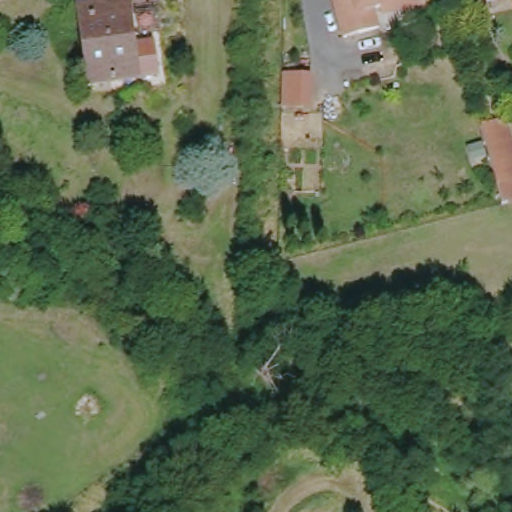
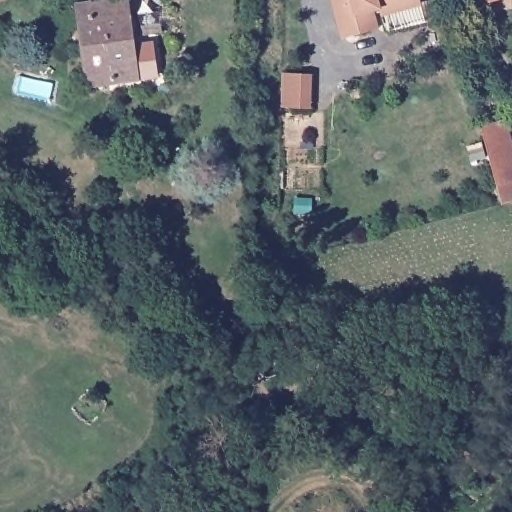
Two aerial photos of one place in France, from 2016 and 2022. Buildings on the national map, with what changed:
unchanged [(122,49),(145,46),(150,79),(80,87),(70,5),(117,0),(122,49)]
unchanged [(370,29),(335,38),(324,0),(406,0),(365,13),(370,29)]
unchanged [(479,0),(486,0),(480,1),(479,0)]
unchanged [(471,55),(476,71),(464,76),(459,58),(471,55)]
unchanged [(477,125),(501,117),(512,163),(512,177),(502,179),(507,201),(495,204),(490,183),(477,125)]

